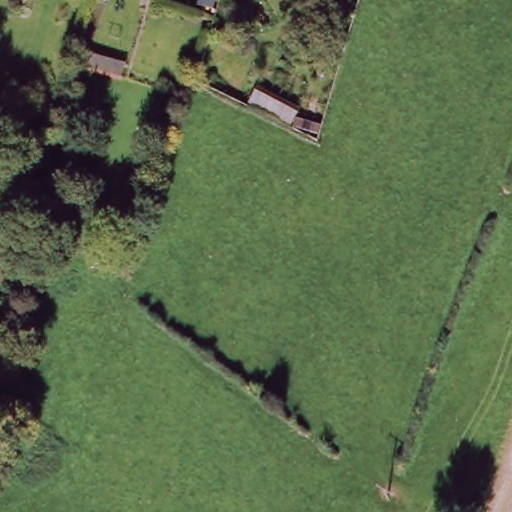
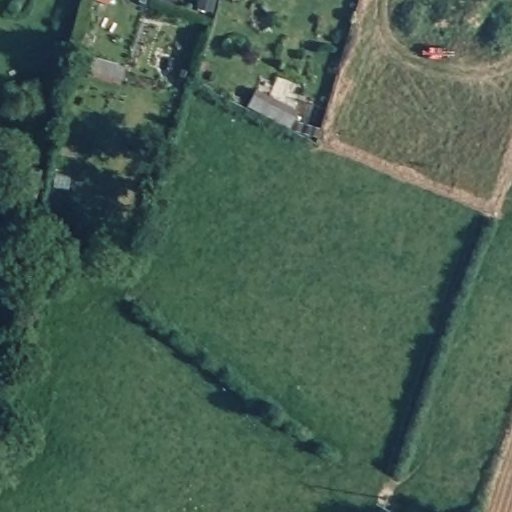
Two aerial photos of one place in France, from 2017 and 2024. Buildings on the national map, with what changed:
unchanged [(101,0),(105,0),(105,2),(101,0)]
unchanged [(114,68),(110,82),(75,72),(80,57),(114,68)]
unchanged [(252,108),(264,92),(297,108),(294,117),(322,131),(317,141),(252,108)]

